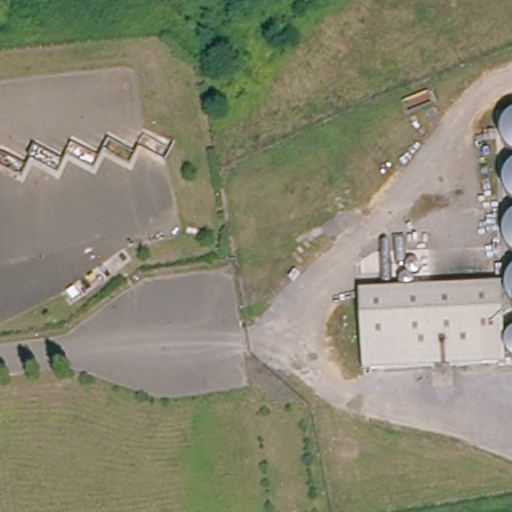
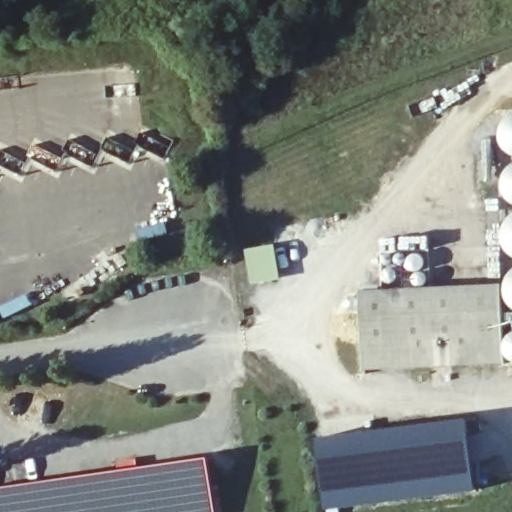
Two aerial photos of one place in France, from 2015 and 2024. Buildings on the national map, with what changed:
unchanged [(504,142),(503,135),(504,128),(509,119),(512,118),(512,154),(508,150),(504,142)]
unchanged [(506,192),(505,183),(506,173),(512,167),(512,202),(509,199),(506,192)]
unchanged [(506,246),(504,238),(505,229),(508,220),(512,217),(512,255),(511,254),(506,246)]
unchanged [(508,295),(507,284),(511,274),(512,274),(512,306),(511,304),(508,295)]
unchanged [(361,292),(501,285),(504,363),(363,369),(361,292)]
unchanged [(506,348),(507,340),(512,334),(512,360),(508,357),(506,348)]
new [(467,419),(476,490),(324,510),(315,438),(467,419)]
new [(0,512),(0,488),(208,458),(215,512),(0,512)]

